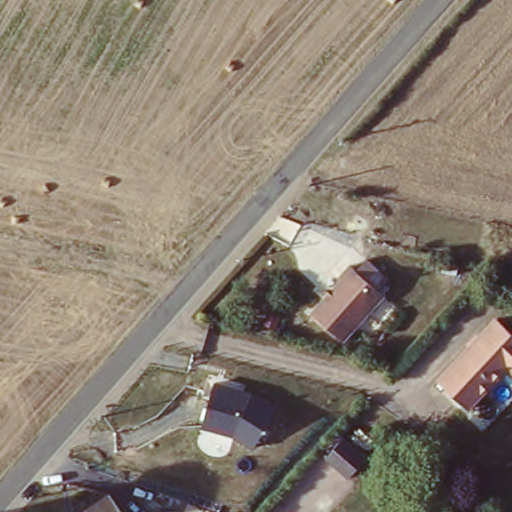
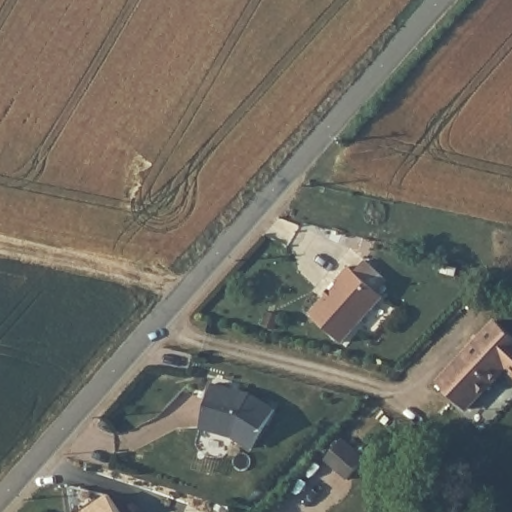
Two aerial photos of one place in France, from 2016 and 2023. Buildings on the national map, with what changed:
unchanged [(334,288),(337,290),(347,280),(344,275),(355,263),(360,268),(371,259),(392,278),(383,288),(389,296),(348,338),(317,312),(334,288)]
unchanged [(512,373),(508,370),(468,408),(439,381),(497,318),(512,331),(512,373)]
unchanged [(269,325),(281,328),(277,342),(265,338),(269,325)]
unchanged [(219,380),(258,392),(279,405),(257,444),(238,433),(206,425),(219,380)]
unchanged [(344,436),(368,456),(351,474),(329,454),(344,436)]
unchanged [(108,489),(124,512),(79,512),(81,509),(108,489)]

